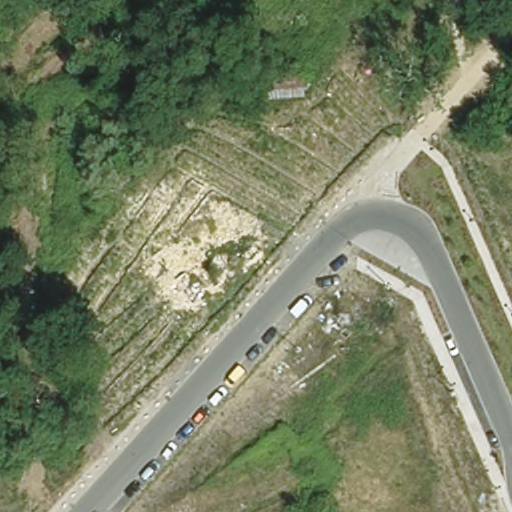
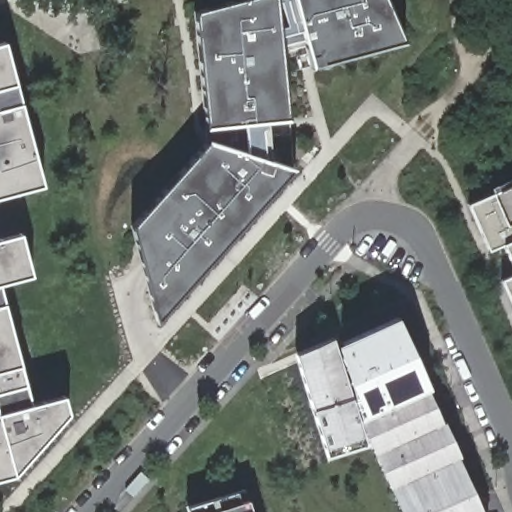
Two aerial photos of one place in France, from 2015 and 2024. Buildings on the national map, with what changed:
new [(213,139),(247,149),(246,131),(208,132),(195,10),(234,0),(287,0),(292,41),(283,42),(293,132),(268,134),(268,156),(297,166),(159,320),(134,227),(213,139)]
new [(406,42),(313,66),(295,0),(387,0),(406,42)]
new [(5,41),(44,185),(0,196),(0,42),(5,41)]
new [(490,246),(469,201),(512,183),(512,266),(500,244),(490,246)]
new [(22,234),(33,275),(0,283),(0,239),(22,234)]
new [(512,271),(512,298),(502,278),(512,271)]
new [(31,405),(65,396),(70,412),(15,476),(0,479),(0,293),(31,405)]
new [(483,512),(400,512),(368,440),(328,452),(295,351),(392,313),(483,512)]
new [(245,488),(249,500),(253,512),(188,512),(186,507),(245,488)]

